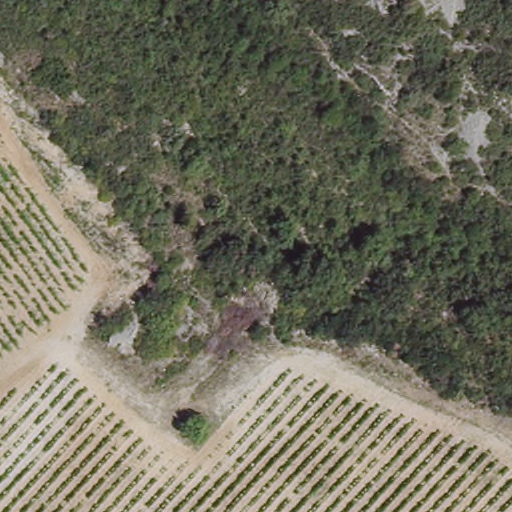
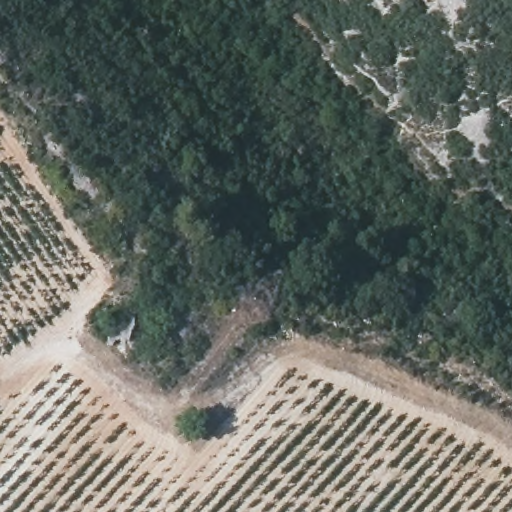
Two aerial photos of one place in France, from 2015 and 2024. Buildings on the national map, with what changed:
unchanged [(108,328),(132,309),(142,322),(123,345),(108,328)]

